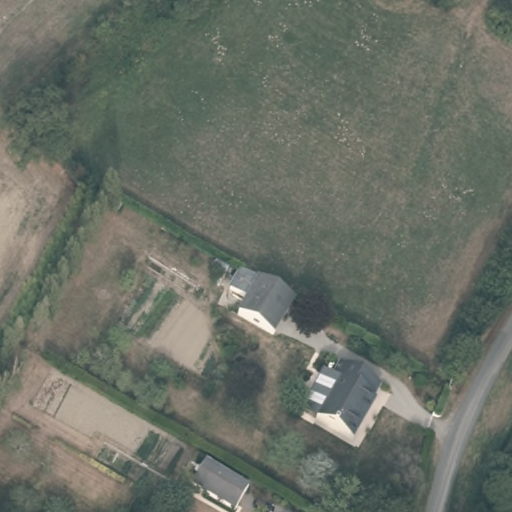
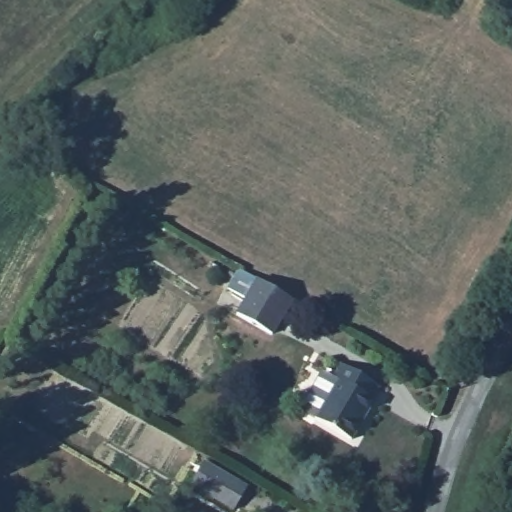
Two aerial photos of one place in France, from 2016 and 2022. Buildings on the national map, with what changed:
unchanged [(272,336),(236,316),(246,300),(229,290),(239,272),(256,282),(292,302),(272,336)]
unchanged [(372,406),(374,407),(351,447),(300,417),(322,378),(325,379),(326,377),(332,380),(339,370),(379,393),(372,406)]
unchanged [(244,512),(208,512),(191,502),(204,480),(247,506),(244,512)]

